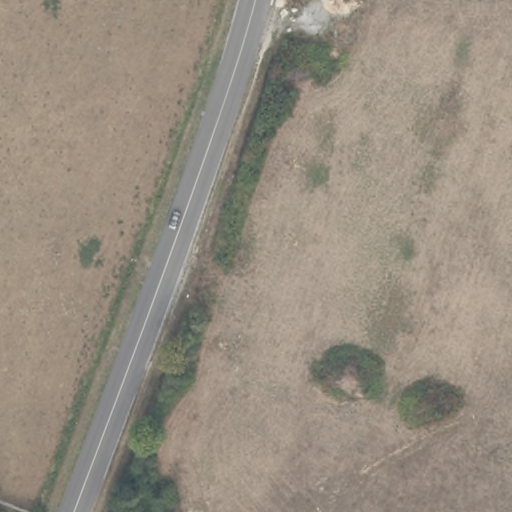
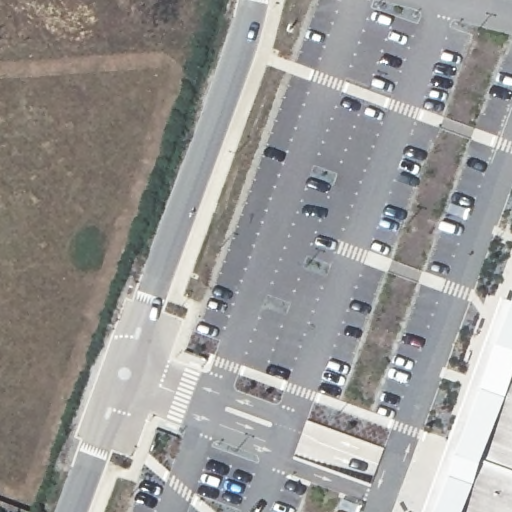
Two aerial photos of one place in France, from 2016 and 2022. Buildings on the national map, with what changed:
new [(512,512),(440,512),(512,312),(512,512)]

